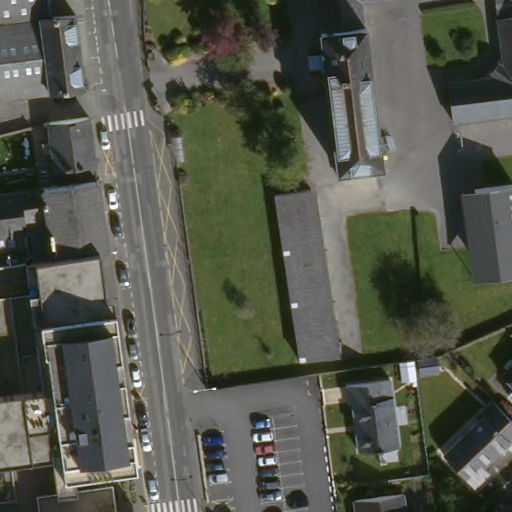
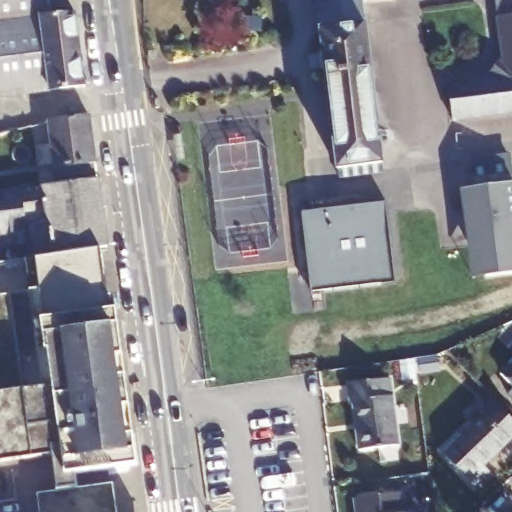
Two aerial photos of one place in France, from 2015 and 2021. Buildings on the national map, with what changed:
unchanged [(78,18),(87,91),(0,102),(0,0),(51,0),(54,21),(78,18)]
unchanged [(364,0),(359,0),(378,160),(333,165),(314,0),(364,0)]
unchanged [(501,64),(507,66),(501,20),(512,19),(512,117),(455,125),(450,88),(497,81),(491,77),(501,64)]
unchanged [(47,169),(41,125),(86,117),(93,164),(47,169)]
new [(512,155),(512,186),(477,190),(464,192),(463,189),(475,187),(471,158),(512,152),(512,155)]
unchanged [(110,252),(27,265),(0,269),(0,193),(101,177),(110,252)]
unchanged [(512,186),(512,275),(489,278),(477,190),(512,186)]
demolished [(276,194),(314,189),(338,356),(299,361),(276,194)]
unchanged [(464,192),(477,190),(489,278),(476,280),(464,192)]
new [(397,282),(312,293),(303,211),(387,201),(397,282)]
unchanged [(124,296),(141,408),(124,412),(129,438),(145,435),(147,472),(57,480),(52,461),(0,468),(0,301),(27,295),(27,265),(110,252),(111,296),(124,296)]
unchanged [(502,377),(512,368),(512,388),(502,377)]
unchanged [(391,385),(398,451),(358,456),(354,406),(351,406),(350,389),(391,385)]
unchanged [(507,395),(512,391),(512,401),(507,395)]
unchanged [(512,423),(512,449),(487,473),(491,479),(475,494),(445,460),(487,421),(483,417),(496,405),(512,423)]
unchanged [(114,486),(118,512),(47,512),(46,500),(114,486)]
unchanged [(403,492),(406,512),(358,512),(356,498),(403,492)]
unchanged [(414,511),(415,512),(410,512),(414,511)]

